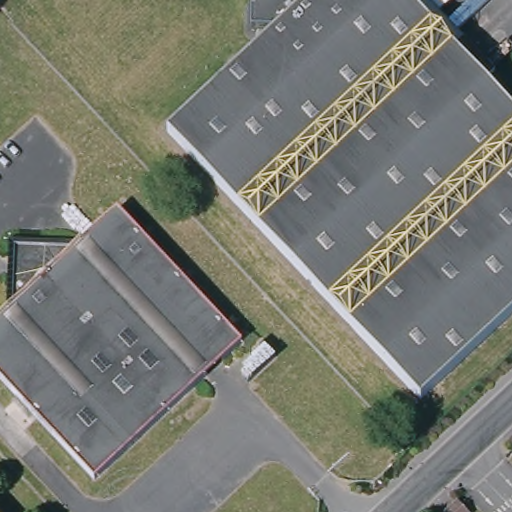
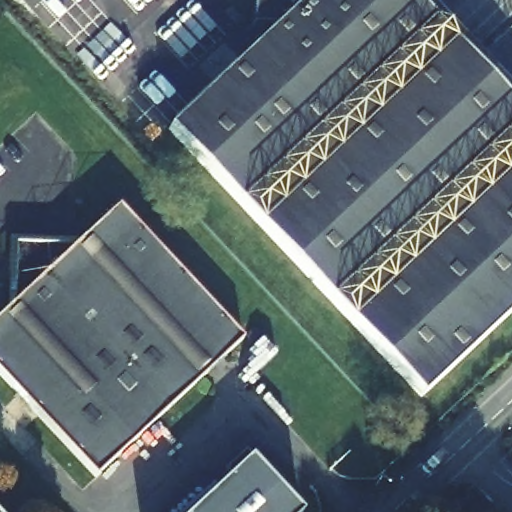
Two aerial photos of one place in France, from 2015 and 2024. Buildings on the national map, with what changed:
unchanged [(445,45),(454,36),(484,68),(475,77),(512,116),(512,301),(413,394),(159,127),(267,27),(242,27),(243,4),(250,0),(400,0),(445,45)]
unchanged [(8,309),(11,237),(82,240),(117,207),(241,340),(92,478),(0,378),(0,316),(8,309)]
new [(318,512),(191,512),(255,451),(318,512)]
new [(471,512),(446,512),(445,510),(457,497),(471,512)]

